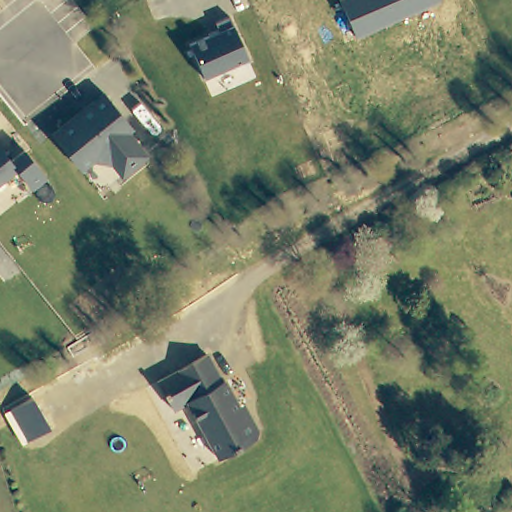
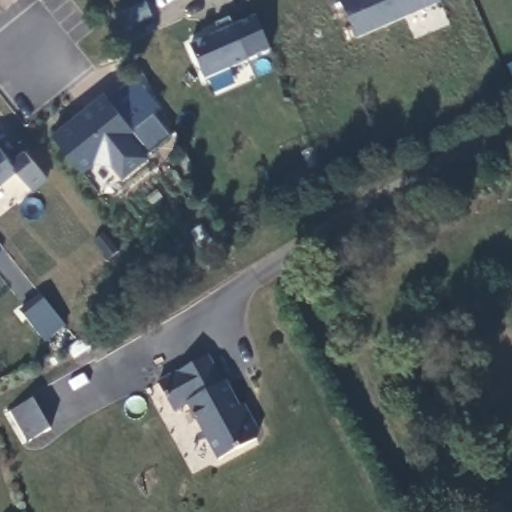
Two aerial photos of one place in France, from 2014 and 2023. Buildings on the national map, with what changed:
unchanged [(357,39),(341,0),(343,0),(440,0),(441,3),(357,39)]
unchanged [(204,80),(187,44),(217,31),(214,25),(231,18),(249,61),(204,80)]
unchanged [(122,179),(111,166),(92,162),(82,172),(52,135),(104,94),(135,131),(131,135),(149,157),(122,179)]
unchanged [(17,171),(0,184),(0,144),(15,161),(26,152),(52,182),(34,193),(17,171)]
new [(21,315),(43,298),(62,325),(43,341),(21,315)]
unchanged [(207,353),(247,418),(250,415),(259,431),(257,437),(220,458),(188,401),(175,410),(158,382),(207,353)]
unchanged [(27,442),(9,411),(33,397),(51,430),(27,442)]

